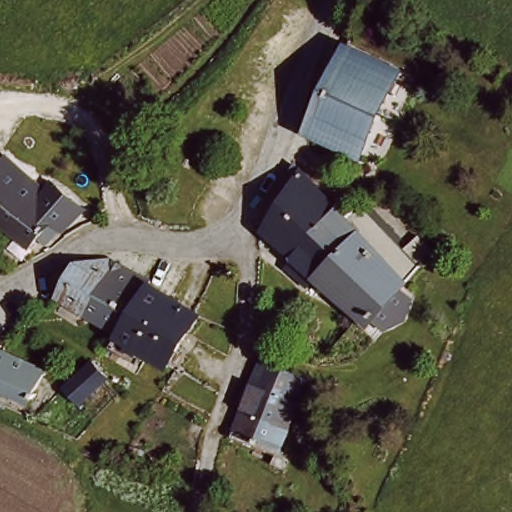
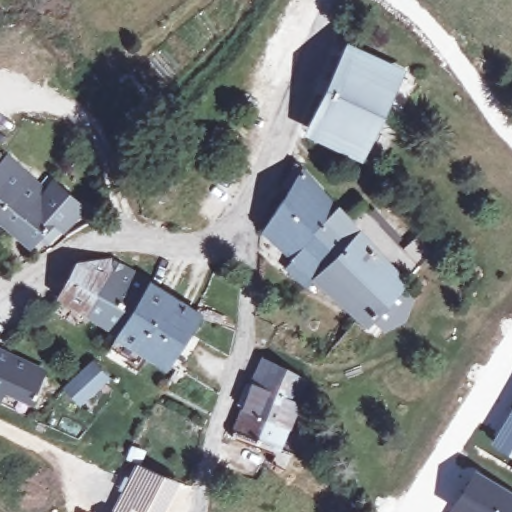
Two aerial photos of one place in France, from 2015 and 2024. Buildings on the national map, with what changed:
unchanged [(370,109),(332,91),(350,53),(396,75),(378,113),(370,109)]
unchanged [(360,151),(314,130),(332,91),(370,109),(378,113),(360,151)]
unchanged [(23,241),(22,243),(0,224),(0,153),(36,186),(43,177),(75,204),(52,227),(50,224),(29,246),(23,241)]
unchanged [(385,335),(374,325),(369,331),(315,282),(307,290),(291,276),(292,270),(296,266),(263,236),(292,192),(285,188),(296,171),(303,175),(346,223),(361,209),(402,255),(418,242),(434,258),(406,289),(400,295),(411,305),(405,325),(385,335)]
unchanged [(140,289),(142,292),(145,293),(114,345),(56,308),(75,274),(109,271),(140,289)]
unchanged [(196,326),(176,357),(162,379),(112,348),(114,345),(145,293),(196,326)]
unchanged [(46,373),(30,403),(4,389),(0,400),(0,353),(46,373)]
unchanged [(264,354),(307,376),(282,445),(293,449),(286,466),(272,460),(278,446),(235,429),(245,402),(240,400),(247,381),(252,382),(253,379),(264,354)]
unchanged [(75,380),(94,361),(109,378),(80,405),(65,389),(75,380)]
new [(512,458),(488,443),(512,404),(512,458)]
new [(125,458),(131,443),(146,449),(140,463),(181,482),(168,511),(170,512),(110,512),(135,462),(125,458)]
new [(474,468),(512,492),(512,512),(449,512),(449,511),(474,468)]

